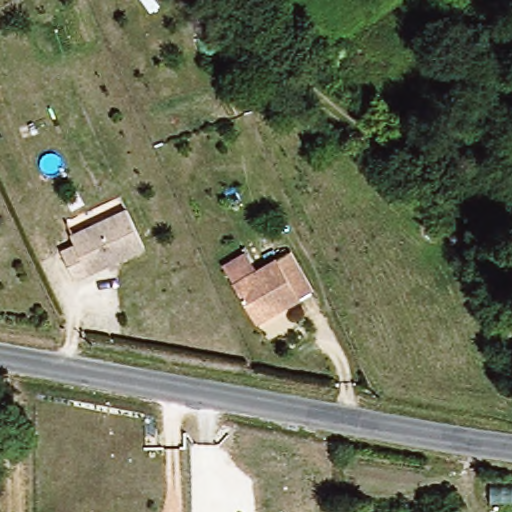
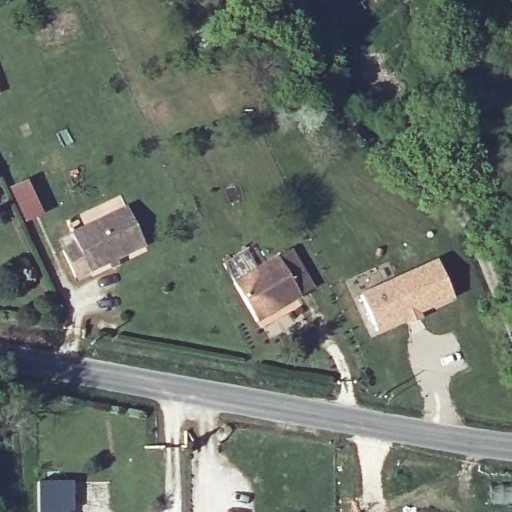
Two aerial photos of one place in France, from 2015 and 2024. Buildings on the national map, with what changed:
unchanged [(69,244),(66,235),(122,210),(139,248),(82,272),(67,278),(56,250),(69,244)]
unchanged [(247,320),(227,280),(286,250),(306,291),(247,320)]
new [(361,294),(436,260),(452,300),(419,315),(421,320),(407,326),(404,321),(376,333),(361,294)]
new [(66,484),(66,512),(34,512),(34,485),(66,484)]

